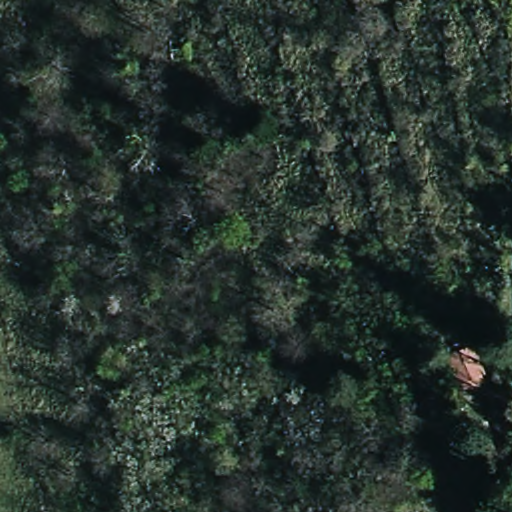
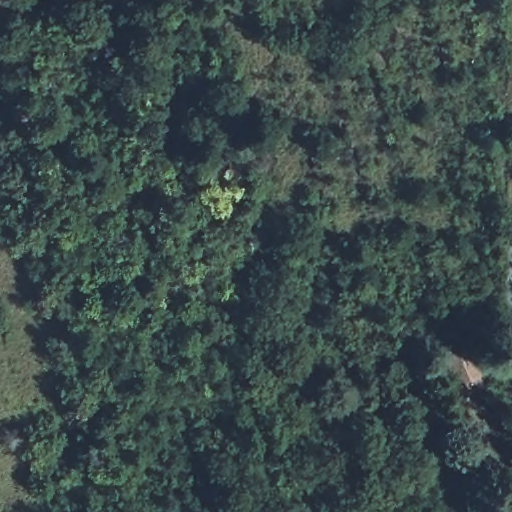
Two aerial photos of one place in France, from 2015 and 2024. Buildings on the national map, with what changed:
unchanged [(471,346),(482,376),(460,383),(445,353),(471,346)]

